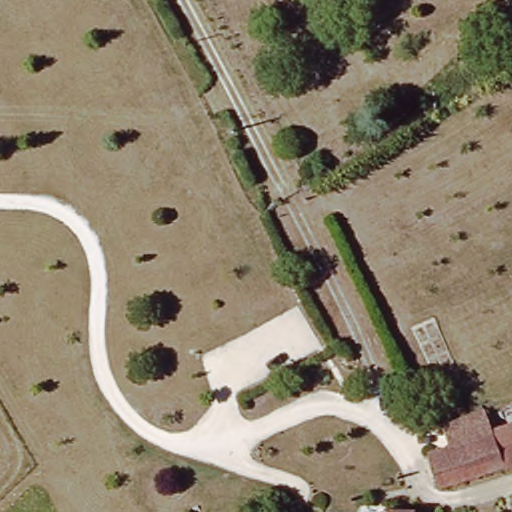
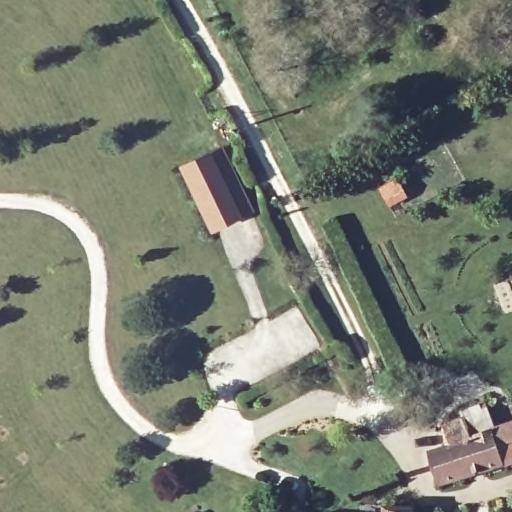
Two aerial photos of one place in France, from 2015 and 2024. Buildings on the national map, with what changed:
new [(222,146),(252,212),(240,217),(210,232),(178,167),(209,152),(222,146)]
unchanged [(435,456),(434,455),(428,452),(417,428),(497,406),(503,435),(435,456)]
unchanged [(446,483),(435,456),(503,435),(512,432),(512,465),(451,486),(449,485),(446,483)]
unchanged [(410,505),(417,510),(417,512),(379,512),(379,507),(410,505)]

